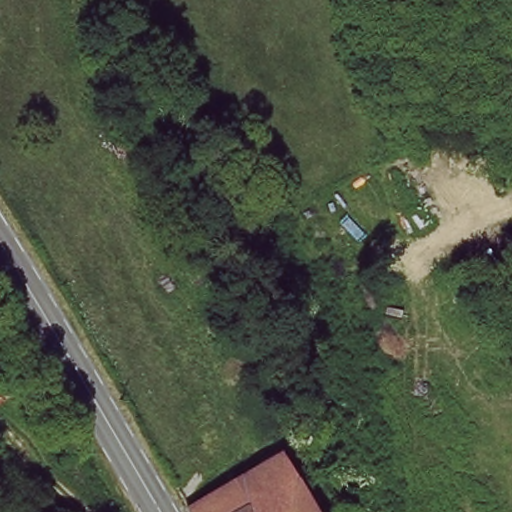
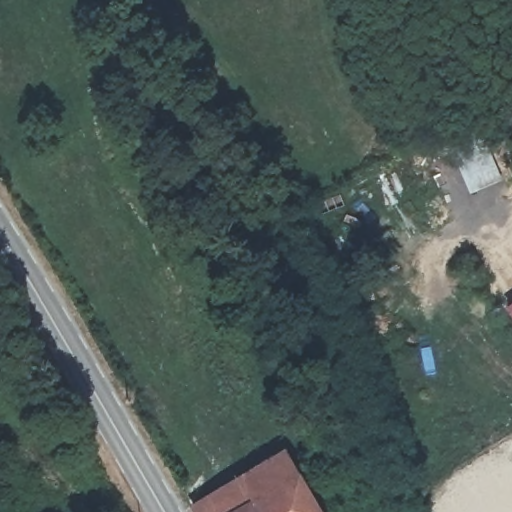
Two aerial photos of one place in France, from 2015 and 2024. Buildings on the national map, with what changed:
new [(512,305),(512,319),(506,309),(512,305)]
unchanged [(285,452),(317,512),(194,512),(191,507),(285,452)]

